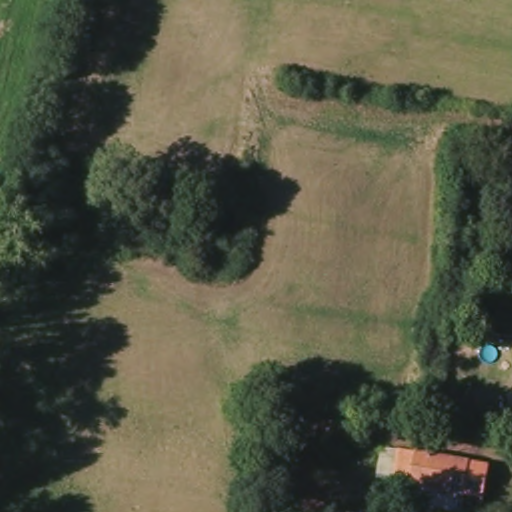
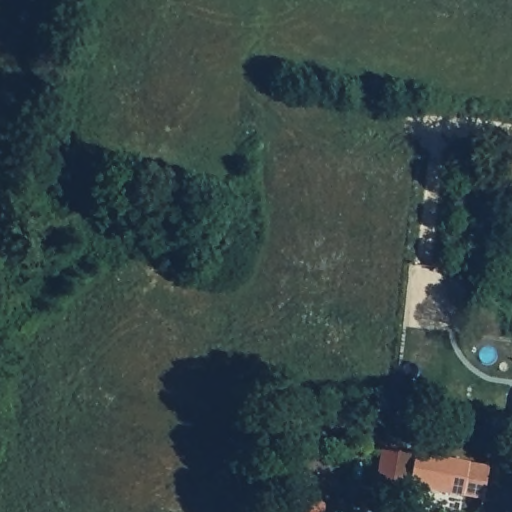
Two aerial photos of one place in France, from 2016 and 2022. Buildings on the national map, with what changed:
unchanged [(381,461),(386,461),(385,456),(397,455),(411,455),(468,454),(470,485),(412,487),(398,487),(381,487),(381,461)]

